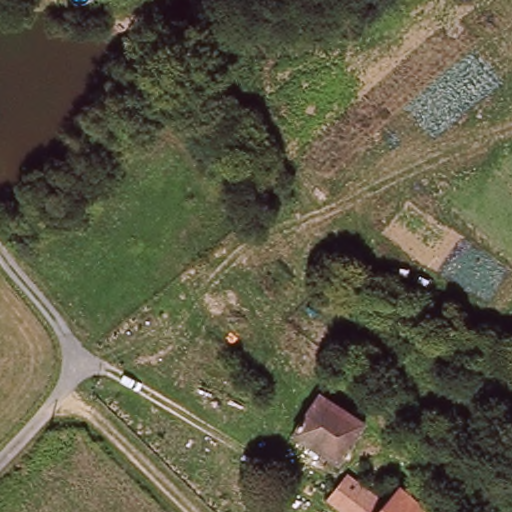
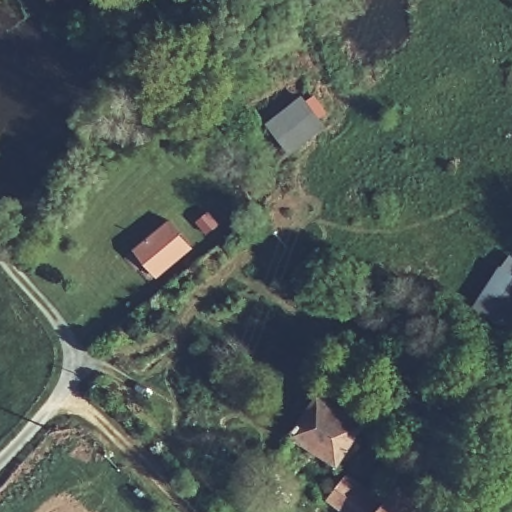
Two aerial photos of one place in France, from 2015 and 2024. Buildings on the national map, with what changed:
new [(289,155),(263,125),(299,97),(325,126),(289,155)]
new [(157,276),(132,249),(168,220),(192,247),(157,276)]
new [(505,255),(512,259),(512,334),(472,310),(505,255)]
unchanged [(320,392),(364,420),(335,463),(292,437),(320,392)]
unchanged [(385,498),(398,483),(431,512),(347,512),(327,497),(346,470),(385,498)]

